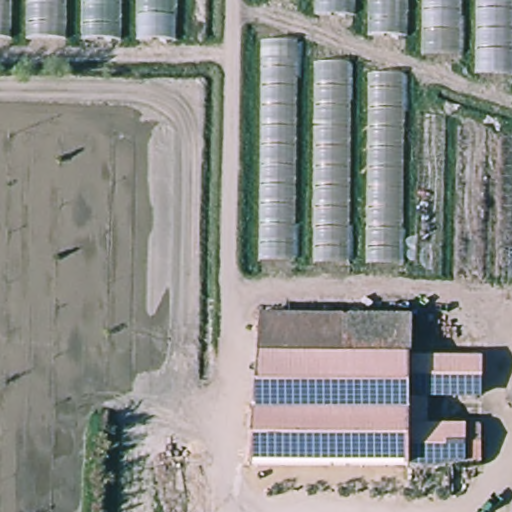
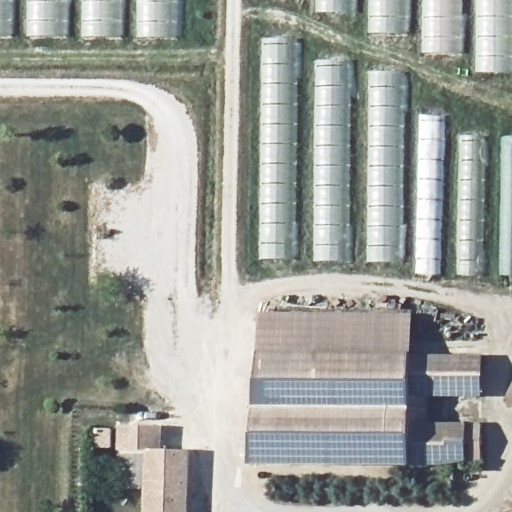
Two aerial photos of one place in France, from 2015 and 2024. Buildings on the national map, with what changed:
unchanged [(0,34),(0,0),(173,0),(173,37),(0,34)]
unchanged [(477,52),(426,51),(424,32),(372,32),(372,16),(318,15),(317,0),(512,0),(512,69),(477,69),(477,52)]
unchanged [(297,39),(300,58),(352,57),(352,72),(403,71),(407,115),(448,115),(448,124),(486,123),(487,135),(512,136),(512,277),(418,276),(418,262),(264,259),(262,40),(297,39)]
unchanged [(261,310),(415,313),(414,352),(484,353),(484,395),(433,400),(432,421),(484,421),(485,458),(409,469),(250,467),(261,310)]
unchanged [(505,401),(512,388),(512,405),(505,401)]
new [(188,512),(143,512),(145,451),(118,450),(117,426),(162,426),(163,450),(190,451),(188,512)]
demolished [(187,467),(206,467),(210,467),(208,512),(186,512),(187,467)]

